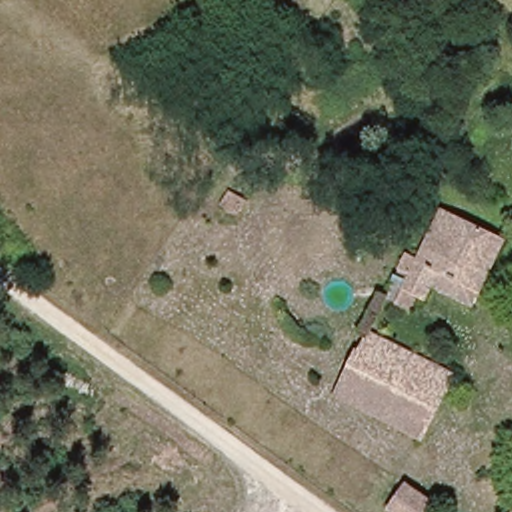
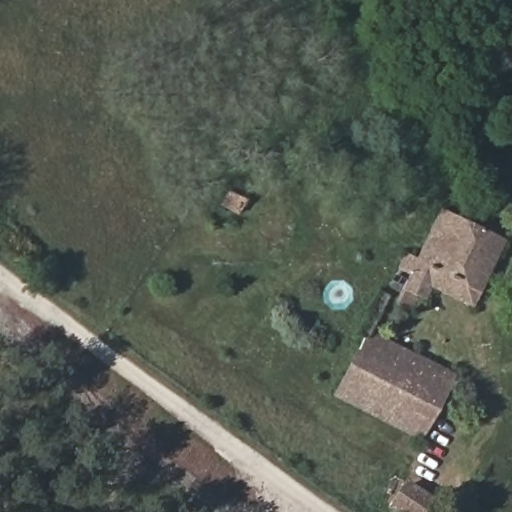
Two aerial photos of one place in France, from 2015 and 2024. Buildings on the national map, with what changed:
unchanged [(220,211),(240,182),(258,196),(238,224),(220,211)]
unchanged [(431,278),(422,296),(407,291),(399,306),(381,296),(402,257),(422,266),(450,213),(505,238),(470,298),(431,278)]
unchanged [(336,391),(371,329),(456,375),(418,440),(336,391)]
unchanged [(413,481),(437,497),(426,512),(400,512),(395,508),(413,481)]

